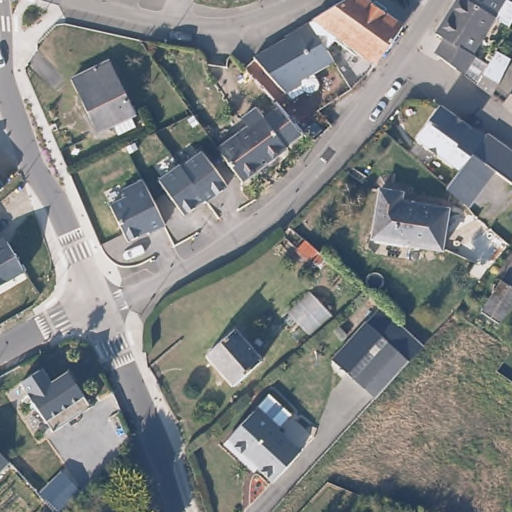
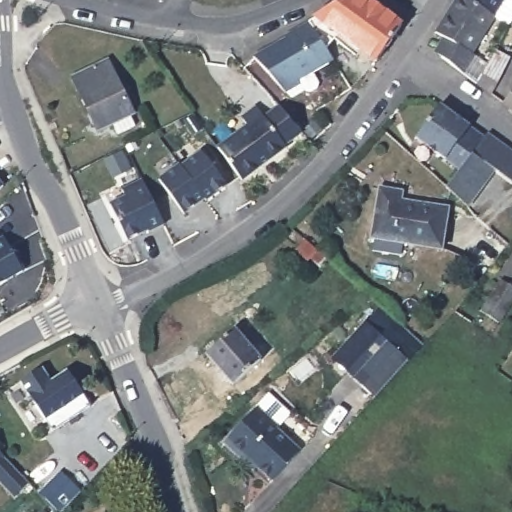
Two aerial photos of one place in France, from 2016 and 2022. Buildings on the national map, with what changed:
unchanged [(400,29),(374,63),(342,40),(324,49),(323,49),(308,22),(347,0),(362,0),(400,29)]
unchanged [(495,8),(472,43),(474,45),(459,66),(437,50),(448,34),(434,24),(450,0),(501,0),(495,8)]
unchanged [(294,33),(293,31),(308,22),(323,49),(324,49),(304,63),(312,73),(310,79),(304,83),(299,82),(287,91),(282,85),(253,57),(294,33)]
unchanged [(494,49),(510,58),(489,93),(476,82),(494,49)]
unchanged [(117,135),(112,125),(100,131),(74,77),(108,60),(133,115),(129,116),(134,126),(117,135)]
unchanged [(501,102),(512,87),(512,110),(501,102)]
unchanged [(469,169),(416,140),(440,103),(489,136),(469,169)]
unchanged [(239,182),(214,148),(242,126),(237,118),(253,108),(262,120),(274,111),(297,135),(282,147),(283,149),(239,182)]
unchanged [(512,153),(512,183),(504,194),(469,169),(489,136),(512,153)]
unchanged [(202,151),(228,186),(188,217),(159,178),(202,151)]
unchanged [(126,199),(120,186),(142,176),(164,226),(126,243),(109,205),(126,199)]
unchanged [(0,195),(0,185),(5,191),(0,195)]
unchanged [(399,191),(398,200),(444,208),(438,251),(369,237),(377,188),(399,191)]
unchanged [(0,285),(0,239),(4,236),(23,272),(0,285)]
unchanged [(319,253),(308,264),(295,252),(306,241),(319,253)]
unchanged [(512,289),(512,297),(494,323),(476,312),(499,280),(512,289)]
unchanged [(422,345),(376,401),(338,363),(382,308),(422,345)]
unchanged [(262,361),(234,387),(209,359),(237,334),(262,361)]
unchanged [(40,369),(52,381),(67,370),(88,405),(52,431),(19,382),(40,369)]
unchanged [(0,383),(0,376),(3,374),(6,379),(0,383)]
unchanged [(242,459),(222,438),(268,392),(288,412),(274,427),(297,450),(269,478),(254,464),(250,467),(242,459)]
unchanged [(0,455),(1,456),(0,457),(0,455)]

